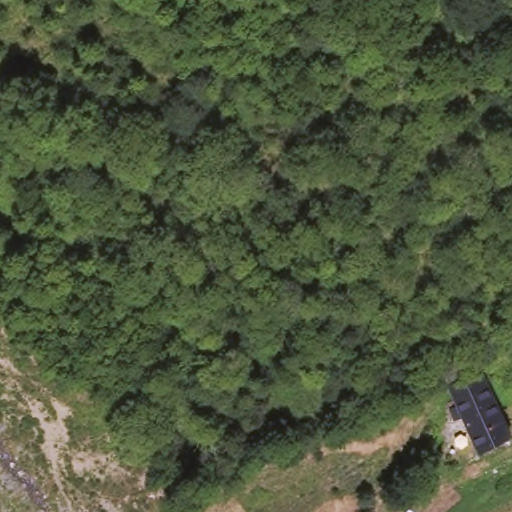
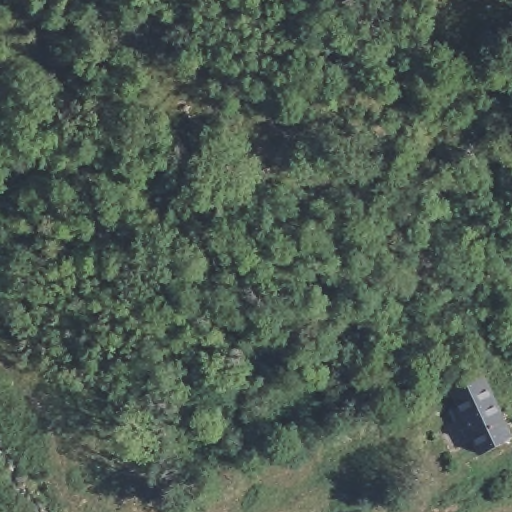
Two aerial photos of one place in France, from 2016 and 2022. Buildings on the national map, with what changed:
unchanged [(488,373),(512,422),(512,439),(482,454),(450,391),(488,373)]

